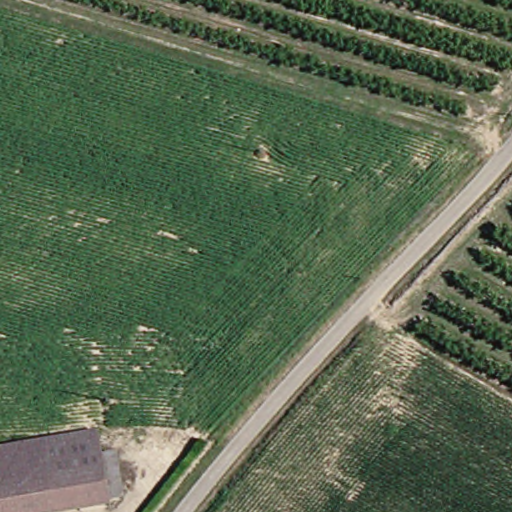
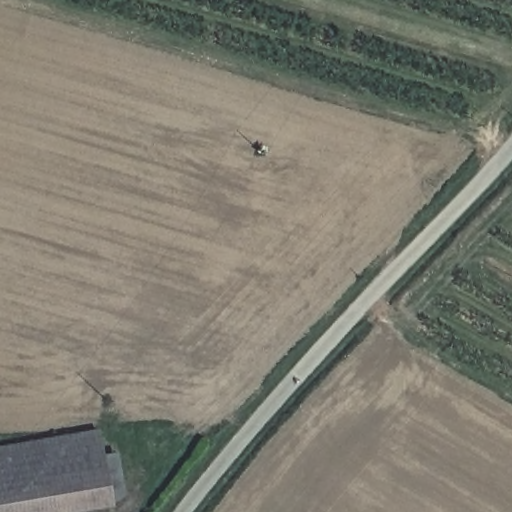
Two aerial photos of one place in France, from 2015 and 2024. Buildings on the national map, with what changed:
unchanged [(106,502),(52,512),(0,512),(0,445),(90,428),(106,502)]

